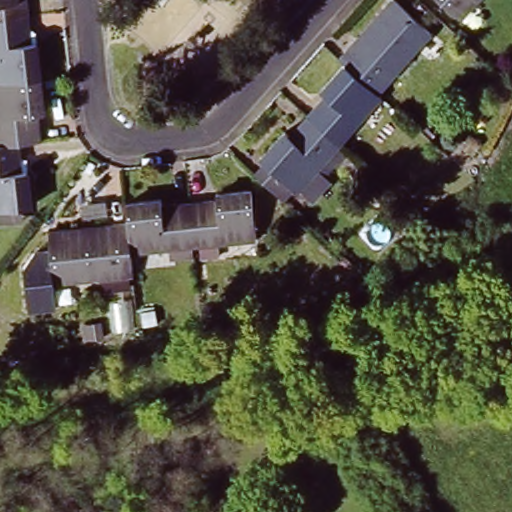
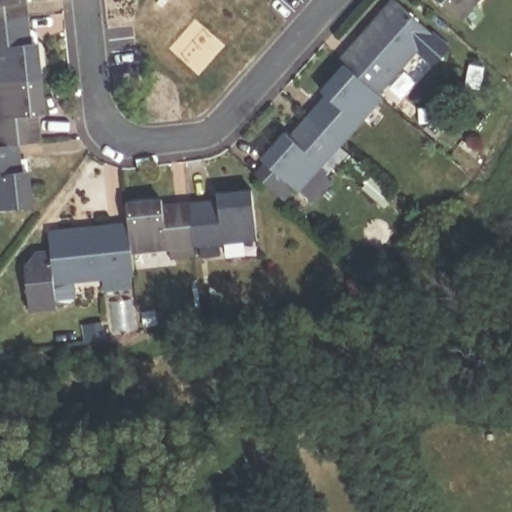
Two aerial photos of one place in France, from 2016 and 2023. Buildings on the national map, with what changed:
unchanged [(0,22),(0,0),(23,0),(25,20),(0,22)]
unchanged [(396,0),(432,33),(380,92),(347,64),(342,59),(394,0),(396,0)]
unchanged [(436,0),(483,0),(462,24),(436,0)]
unchanged [(25,20),(28,47),(35,46),(38,82),(0,86),(0,22),(25,20)]
unchanged [(310,116),(328,95),(323,90),(347,64),(380,92),(384,96),(342,144),(310,116)]
unchanged [(38,82),(42,117),(35,119),(38,145),(15,148),(0,150),(0,86),(38,82)]
unchanged [(300,190),(264,159),(287,132),(292,136),(310,116),(342,144),(300,190)]
unchanged [(18,175),(25,175),(28,209),(0,212),(0,150),(15,148),(18,175)]
unchanged [(267,163),(290,183),(279,195),(257,175),(267,163)]
unchanged [(255,240),(135,249),(138,280),(52,288),(54,307),(27,310),(22,254),(45,252),(43,228),(127,221),(125,197),(155,193),(156,204),(215,200),(215,185),(250,186),(255,240)]

